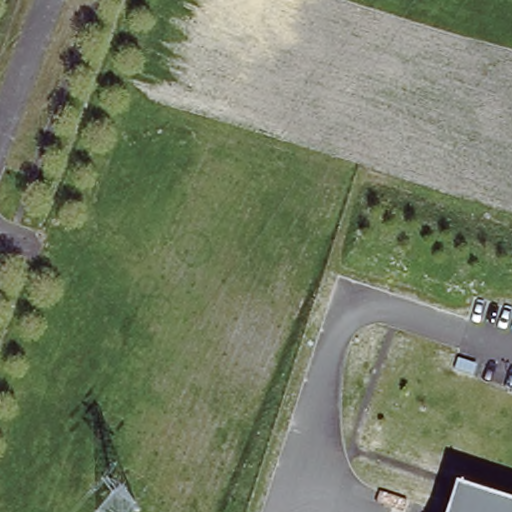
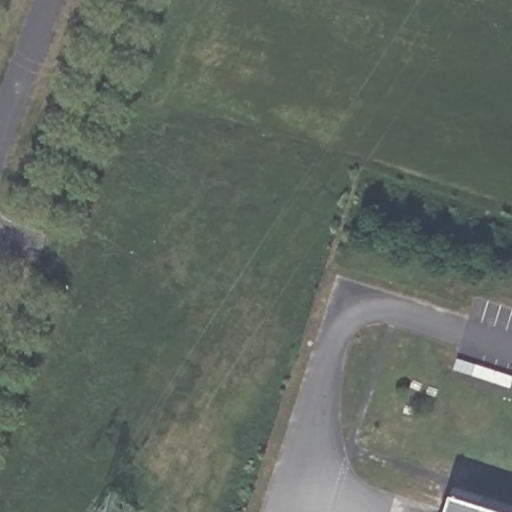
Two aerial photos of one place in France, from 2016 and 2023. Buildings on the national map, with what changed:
unchanged [(512,512),(446,512),(453,489),(512,508),(512,512)]

